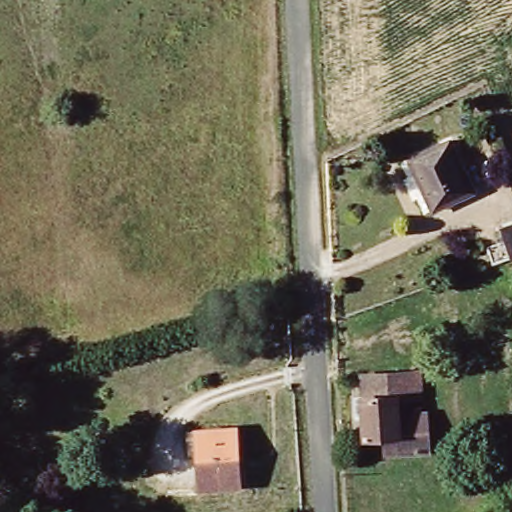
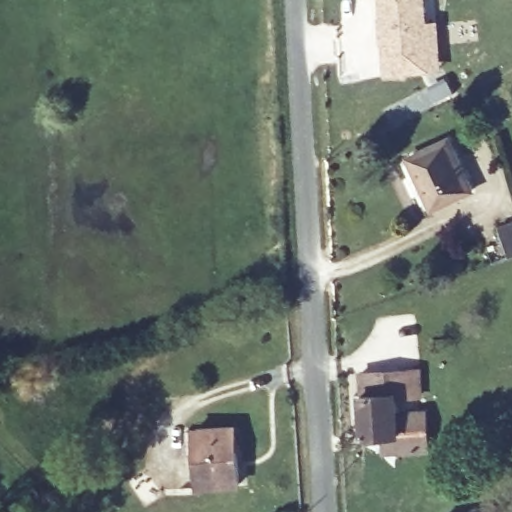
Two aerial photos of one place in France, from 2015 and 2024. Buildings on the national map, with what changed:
new [(428,22),(439,20),(441,70),(384,76),(377,0),(426,0),(428,22)]
unchanged [(443,132),(469,189),(428,207),(401,151),(443,132)]
unchanged [(506,219),(512,217),(512,242),(503,222),(506,219)]
unchanged [(427,448),(422,449),(399,449),(399,444),(398,434),(362,434),(358,411),(351,411),(350,394),(358,394),(358,370),(438,366),(440,392),(416,394),(418,414),(424,414),(426,442),(427,448)]
unchanged [(234,478),(195,479),(195,424),(232,423),(234,478)]
unchanged [(474,512),(434,512),(473,506),(474,512)]

